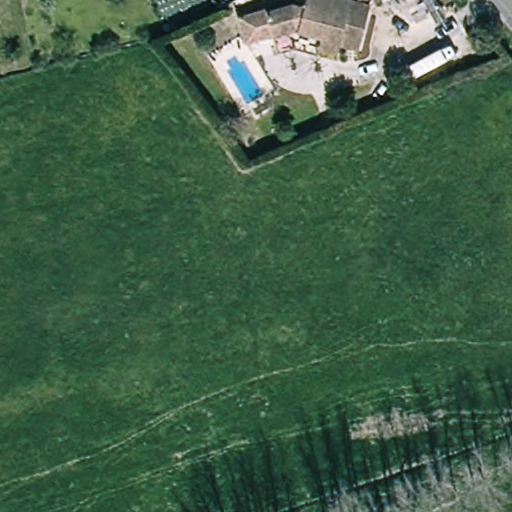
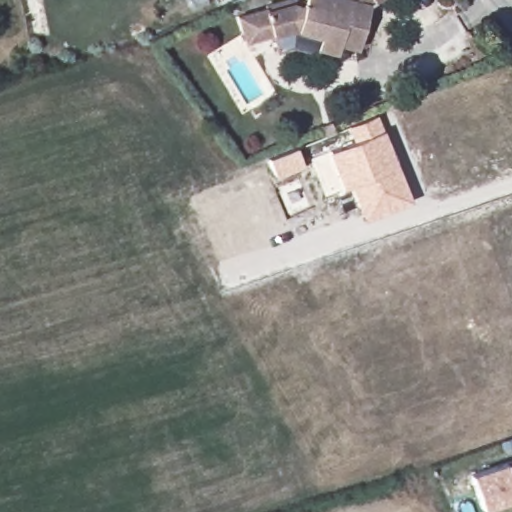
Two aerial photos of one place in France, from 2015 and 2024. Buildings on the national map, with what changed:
unchanged [(270,10),(271,15),(297,7),(307,10),(310,0),(344,0),(348,1),(349,0),(381,0),(373,7),(360,52),(342,47),(338,59),(318,53),(322,39),(297,32),(277,38),(251,46),(242,17),(270,10)]
new [(365,221),(351,186),(342,190),(327,152),(353,142),(347,127),(378,115),(383,131),(412,202),(365,221)]
new [(468,475),(505,462),(512,460),(512,500),(482,511),(468,475)]

